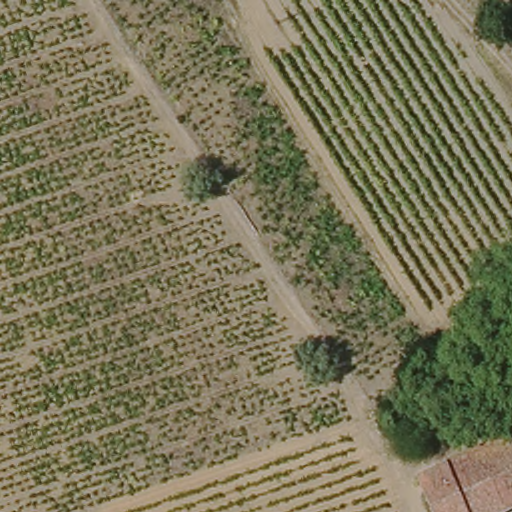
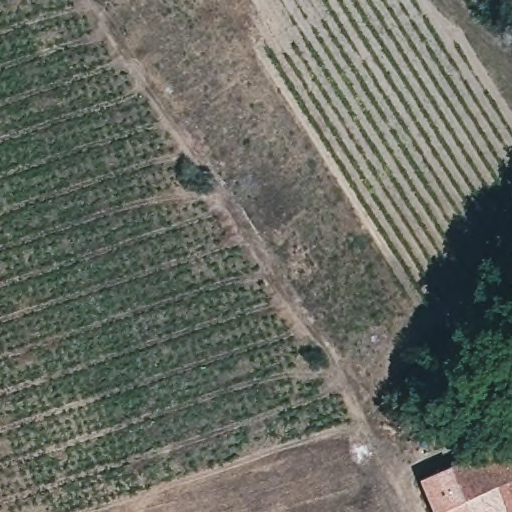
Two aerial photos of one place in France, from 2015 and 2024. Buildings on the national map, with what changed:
unchanged [(430,506),(417,474),(512,433),(512,505),(497,512),(433,512),(430,506)]

